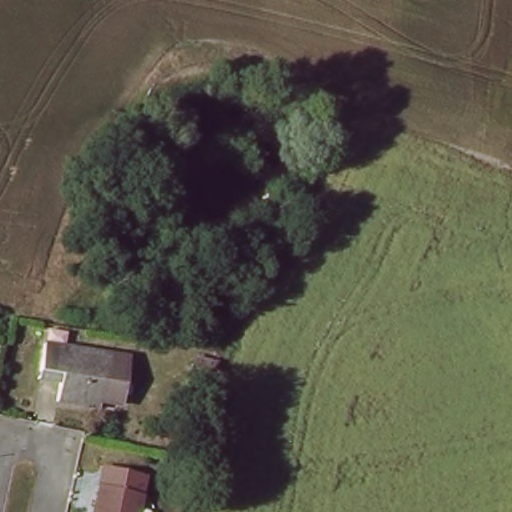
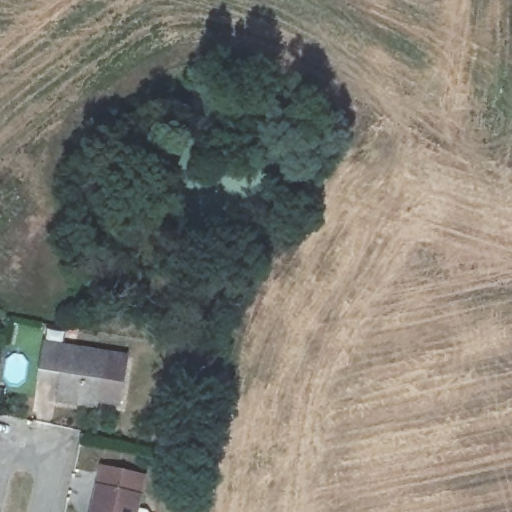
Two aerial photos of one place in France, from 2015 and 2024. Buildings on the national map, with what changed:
unchanged [(131,358),(123,407),(99,403),(97,409),(53,401),(58,375),(33,371),(39,342),(131,358)]
unchanged [(133,505),(148,508),(147,512),(87,512),(93,484),(136,493),(133,505)]

